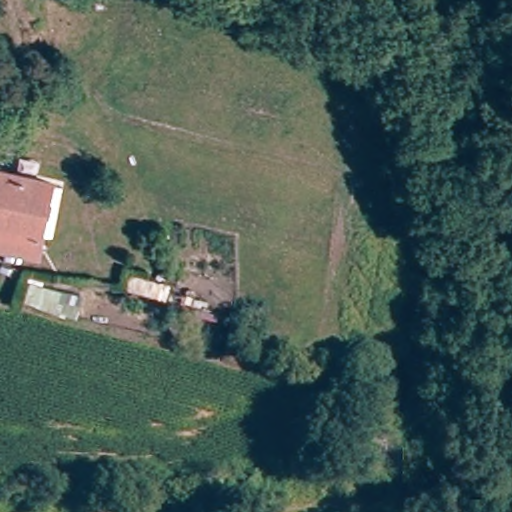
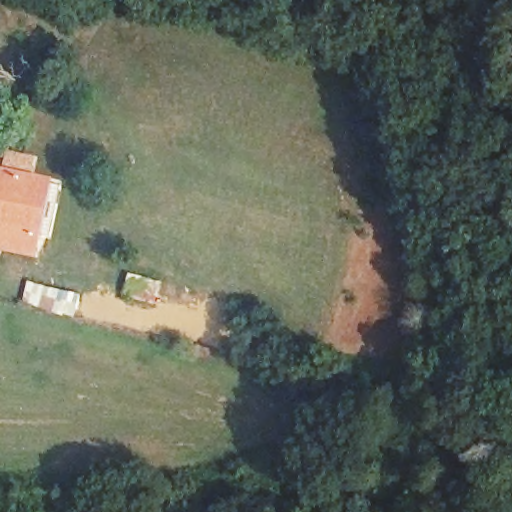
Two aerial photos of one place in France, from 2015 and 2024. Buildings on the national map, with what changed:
unchanged [(43,182),(51,184),(33,255),(25,253),(0,247),(0,174),(0,172),(43,182)]
unchanged [(60,306),(12,295),(15,280),(64,291),(60,306)]

